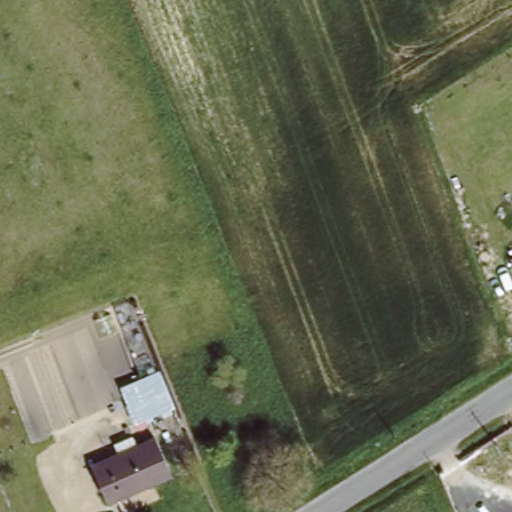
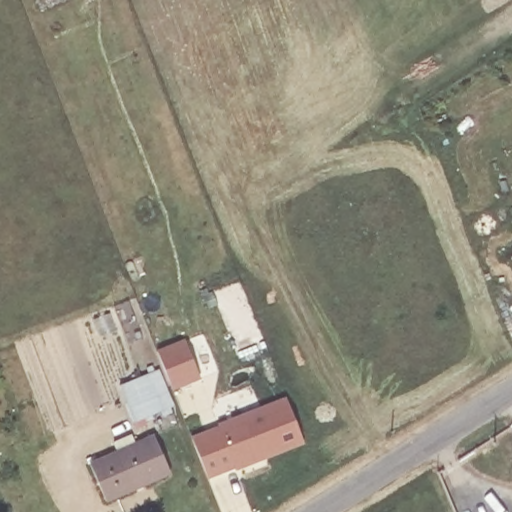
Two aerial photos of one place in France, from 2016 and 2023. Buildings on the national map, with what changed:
unchanged [(512,259),(510,256),(512,255),(512,259)]
demolished [(512,258),(512,261),(511,259),(512,258)]
new [(185,339),(202,379),(172,391),(156,351),(185,339)]
unchanged [(160,371),(174,409),(137,422),(124,384),(160,371)]
new [(218,426),(217,424),(287,398),(306,444),(237,471),(236,468),(207,479),(191,436),(218,426)]
unchanged [(135,431),(139,444),(160,436),(173,472),(110,496),(95,460),(119,451),(115,439),(135,431)]

